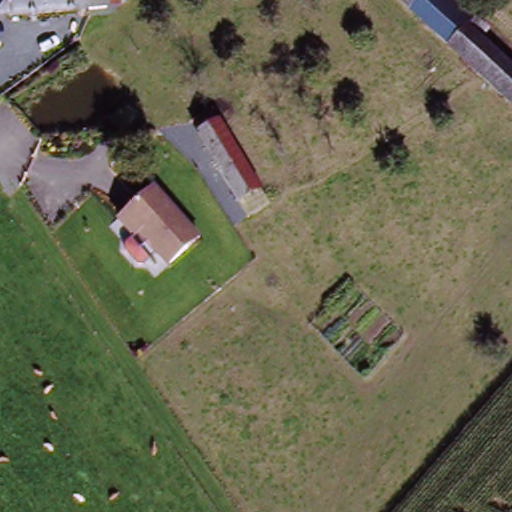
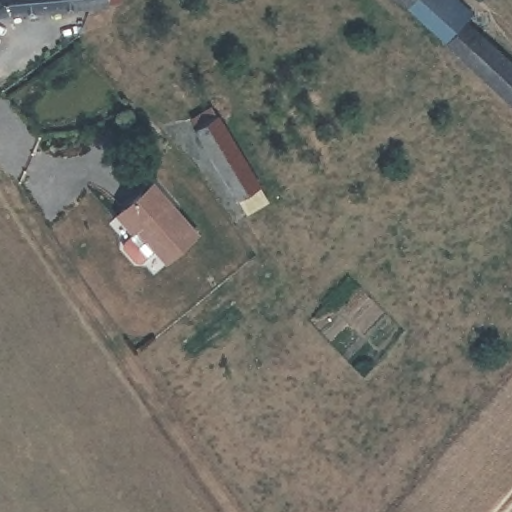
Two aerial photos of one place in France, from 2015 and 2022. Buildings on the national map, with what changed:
unchanged [(116,7),(0,18),(0,0),(115,0),(116,7)]
unchanged [(405,11),(394,0),(416,0),(405,11)]
unchanged [(416,0),(452,0),(474,19),(468,24),(445,47),(405,11),(416,0)]
unchanged [(512,63),(512,109),(445,47),(468,24),(512,63)]
unchanged [(212,117),(258,187),(237,202),(189,130),(212,117)]
unchanged [(145,225),(140,229),(126,210),(160,182),(202,236),(173,260),(145,225)]

